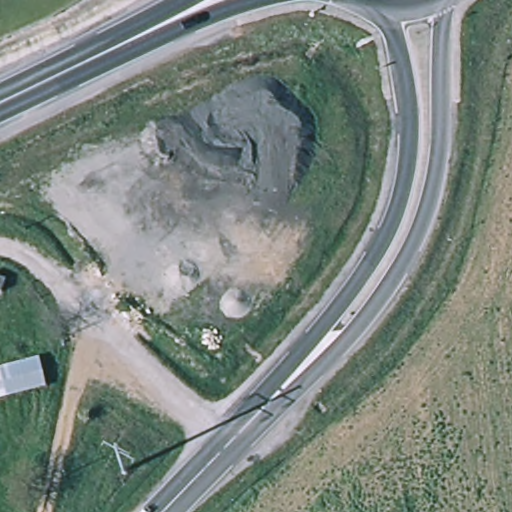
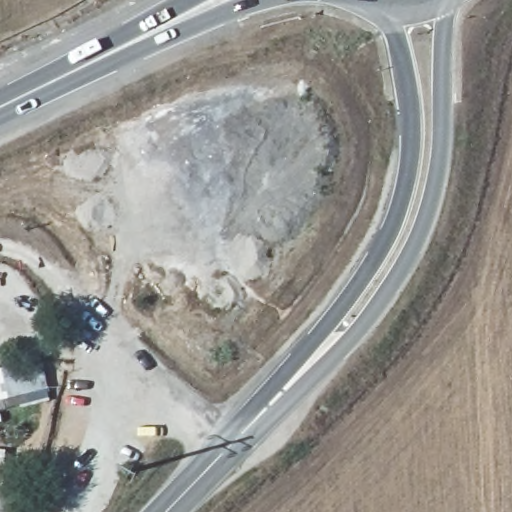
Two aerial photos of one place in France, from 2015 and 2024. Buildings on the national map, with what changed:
unchanged [(52,392),(0,403),(0,373),(44,362),(52,392)]

